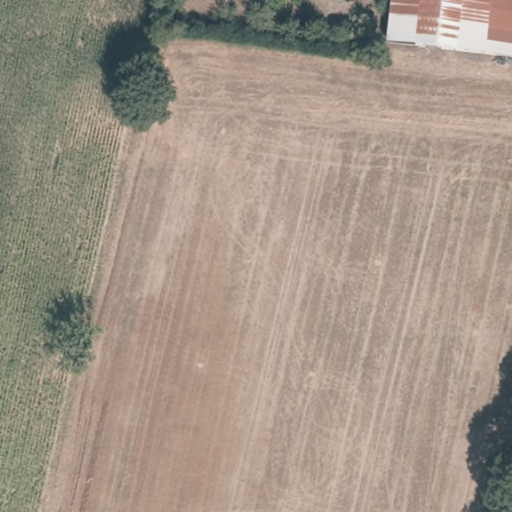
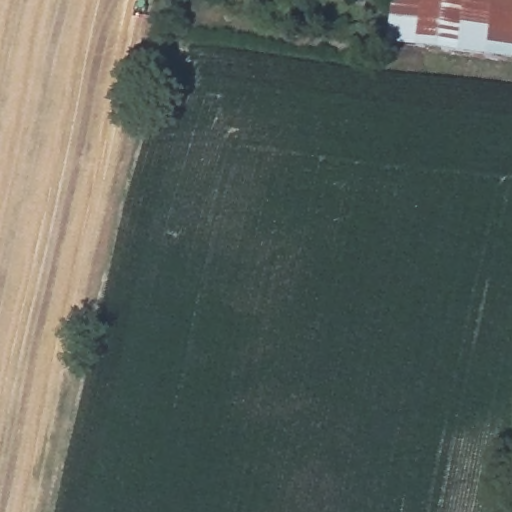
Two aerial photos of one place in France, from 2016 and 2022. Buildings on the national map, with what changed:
unchanged [(393,0),(512,0),(512,58),(417,46),(388,42),(393,0)]

